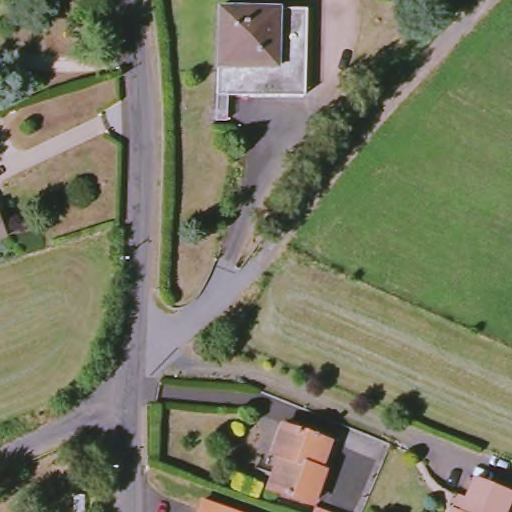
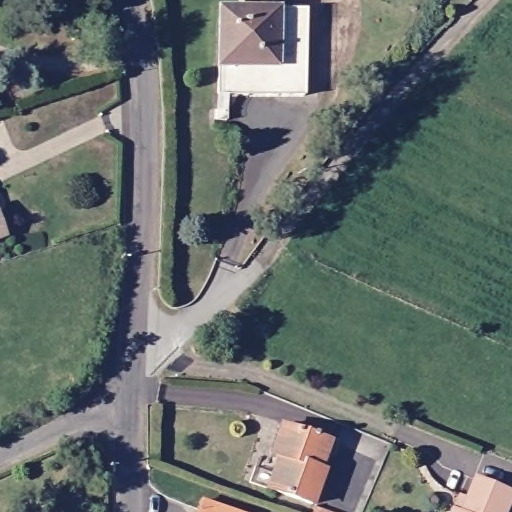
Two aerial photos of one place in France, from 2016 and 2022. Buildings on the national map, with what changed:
unchanged [(251,10),(251,0),(278,0),(278,11),(304,11),(305,94),(218,95),(217,9),(251,10)]
unchanged [(5,238),(0,239),(0,223),(5,238)]
unchanged [(323,469),(328,472),(315,507),(270,491),(280,459),(270,455),(282,424),(335,442),(323,469)]
unchanged [(512,502),(508,512),(453,512),(455,508),(460,494),(467,497),(476,476),(512,491),(512,502)]
unchanged [(200,499),(236,512),(195,512),(200,499)]
unchanged [(316,509),(325,512),(315,512),(316,509)]

